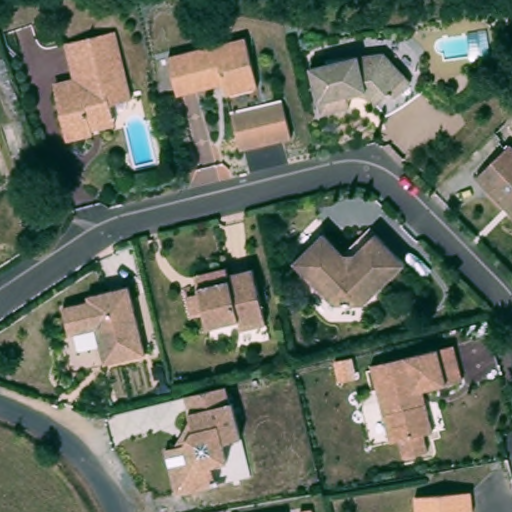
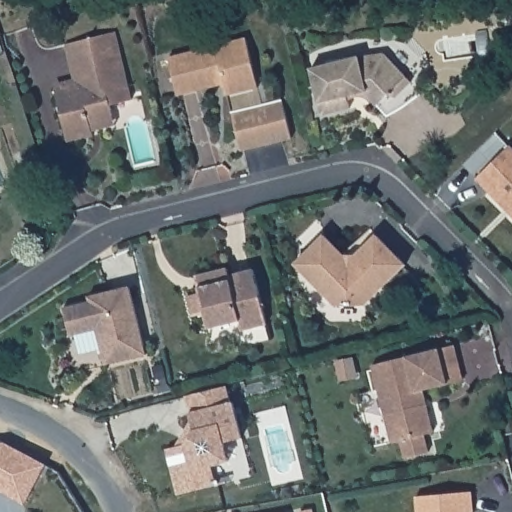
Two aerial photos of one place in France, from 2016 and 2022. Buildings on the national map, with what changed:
unchanged [(92,127),(94,132),(68,138),(55,85),(76,80),(74,70),(66,41),(117,28),(133,96),(112,101),(114,111),(117,122),(92,127)]
unchanged [(179,92),(170,53),(247,34),(260,84),(228,92),(226,80),(213,83),(179,92)]
unchanged [(383,49),(412,79),(421,93),(389,112),(370,92),(318,104),(311,64),(383,49)]
unchanged [(282,100),(290,137),(240,149),(232,112),(282,100)]
unchanged [(477,175),(511,142),(512,144),(512,212),(477,175)]
unchanged [(409,263),(376,298),(336,299),(296,262),(322,232),(345,250),(358,249),(375,229),(409,263)]
unchanged [(240,317),(209,325),(205,309),(192,312),(188,292),(200,289),(199,284),(196,272),(227,264),(230,272),(254,266),(267,321),(242,327),(240,317)]
unchanged [(147,354),(107,363),(97,327),(71,333),(66,306),(90,300),(89,292),(130,284),(147,354)]
unchanged [(425,431),(430,448),(405,455),(401,437),(392,439),(373,362),(455,341),(464,376),(424,386),(427,400),(435,429),(425,431)]
unchanged [(166,449),(182,445),(194,429),(189,411),(184,395),(225,385),(230,402),(240,439),(225,442),(229,461),(213,466),(216,484),(176,494),(166,449)]
new [(25,504),(0,491),(0,443),(5,442),(46,464),(25,504)]
unchanged [(467,493),(469,512),(413,512),(412,498),(467,493)]

